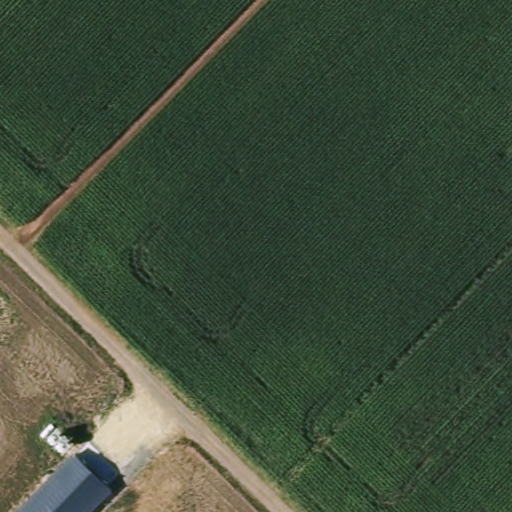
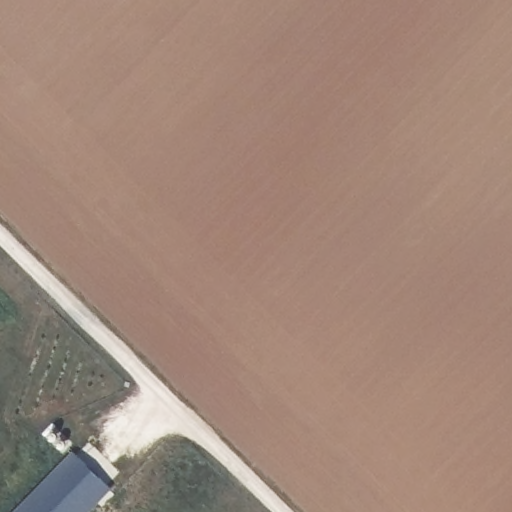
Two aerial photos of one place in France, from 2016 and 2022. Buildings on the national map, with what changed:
unchanged [(113,492),(92,512),(15,512),(74,452),(113,492)]

